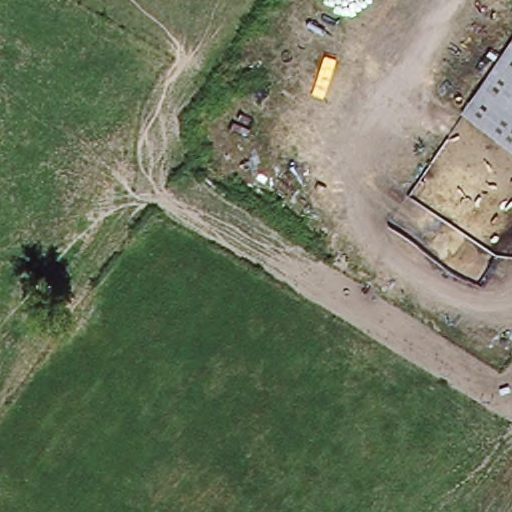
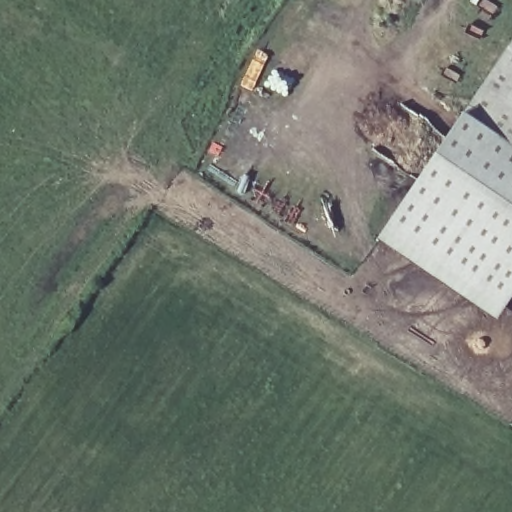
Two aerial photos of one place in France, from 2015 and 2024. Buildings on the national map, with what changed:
unchanged [(460,115),(512,40),(512,151),(460,115)]
new [(497,321),(376,240),(460,115),(512,151),(512,299),(497,321)]

